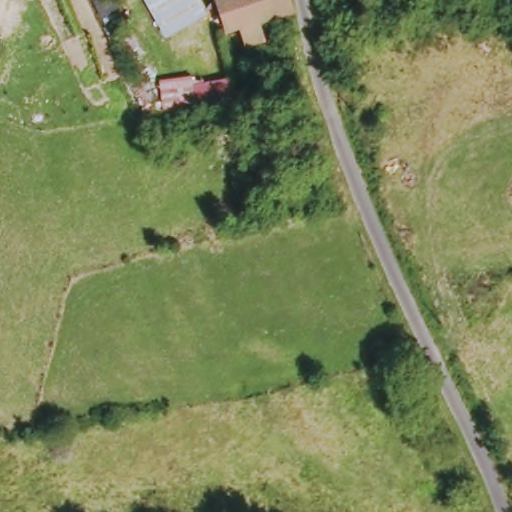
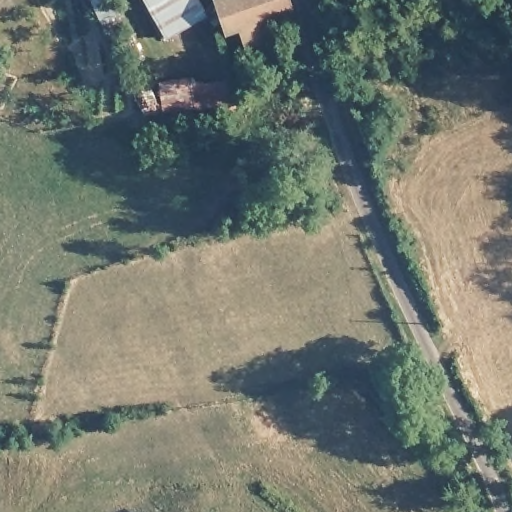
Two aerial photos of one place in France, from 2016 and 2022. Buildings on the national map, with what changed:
unchanged [(201,0),(211,17),(167,41),(144,0),(201,0)]
unchanged [(228,0),(291,0),(296,13),(264,27),(271,44),(253,50),(247,33),(232,38),(219,9),(218,4),(228,0)]

